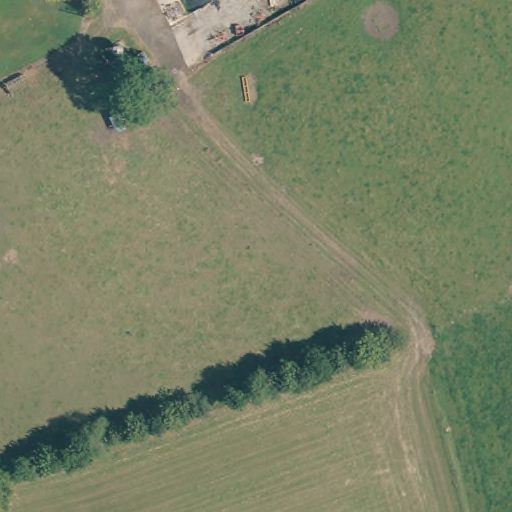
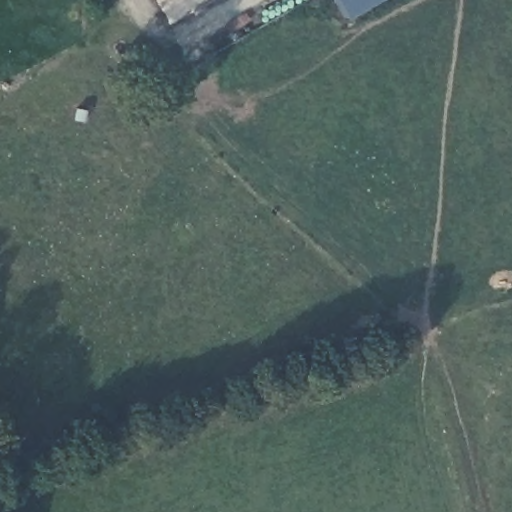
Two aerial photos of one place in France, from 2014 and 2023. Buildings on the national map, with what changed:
new [(334,0),(376,0),(344,18),(334,0)]

